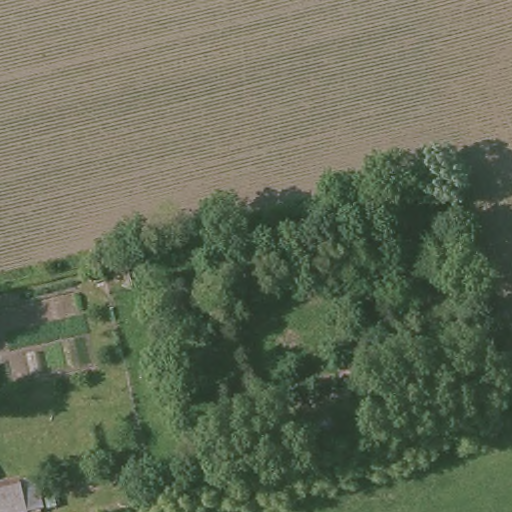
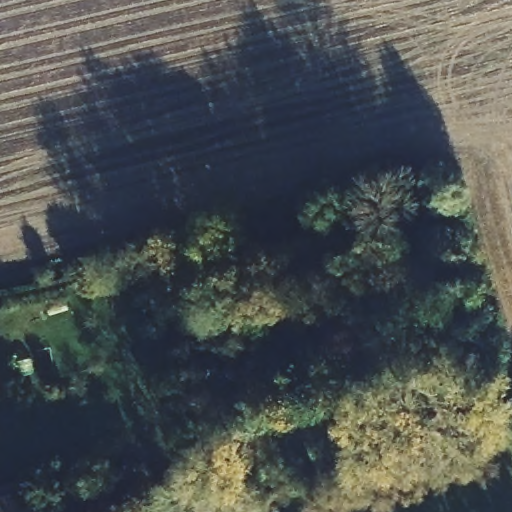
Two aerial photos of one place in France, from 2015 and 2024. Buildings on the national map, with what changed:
unchanged [(40,512),(0,512),(0,487),(32,480),(40,512)]

